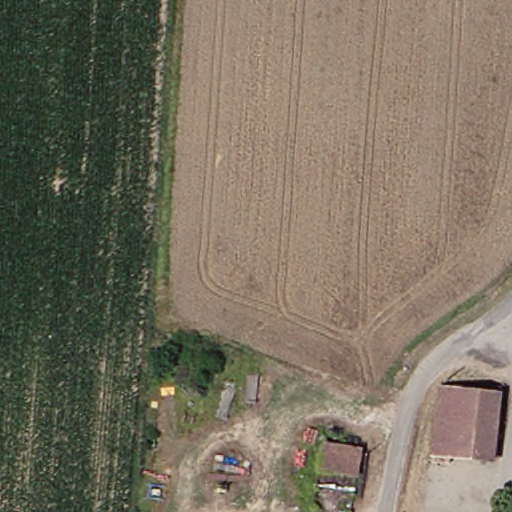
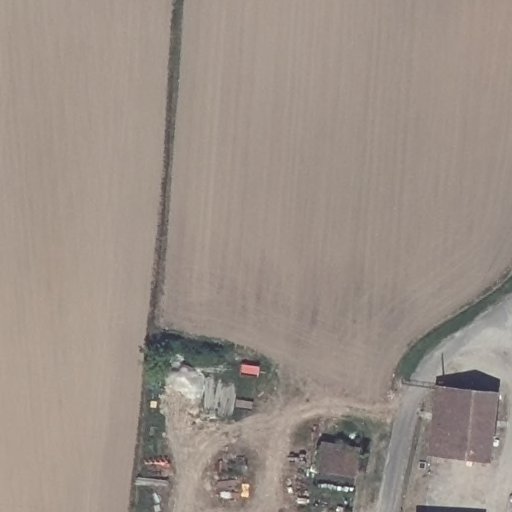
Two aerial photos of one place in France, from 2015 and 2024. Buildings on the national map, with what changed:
unchanged [(501,395),(493,459),(435,452),(441,390),(495,393),(501,395)]
unchanged [(363,448),(359,480),(319,473),(324,442),(363,448)]

